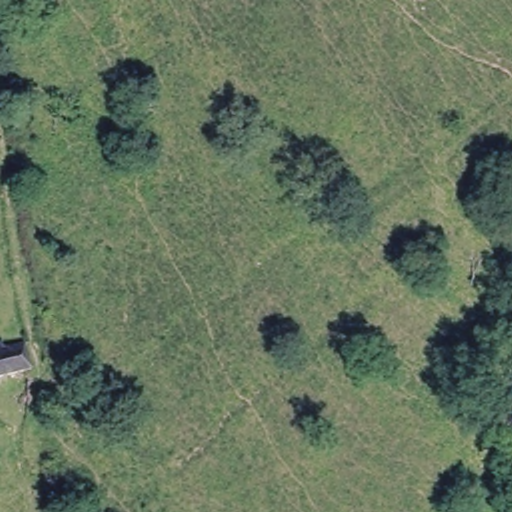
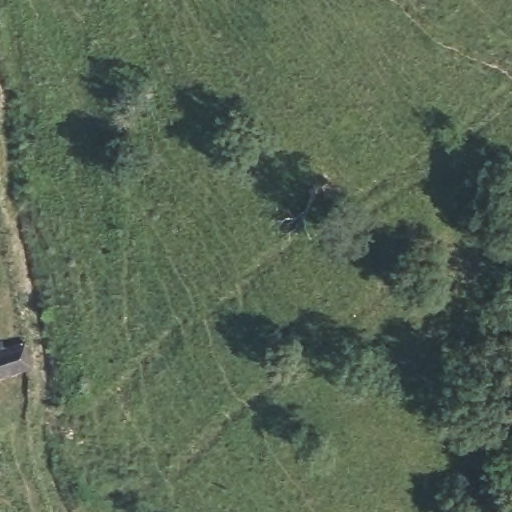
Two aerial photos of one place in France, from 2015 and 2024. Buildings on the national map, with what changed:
unchanged [(24,372),(0,379),(0,350),(15,345),(24,372)]

